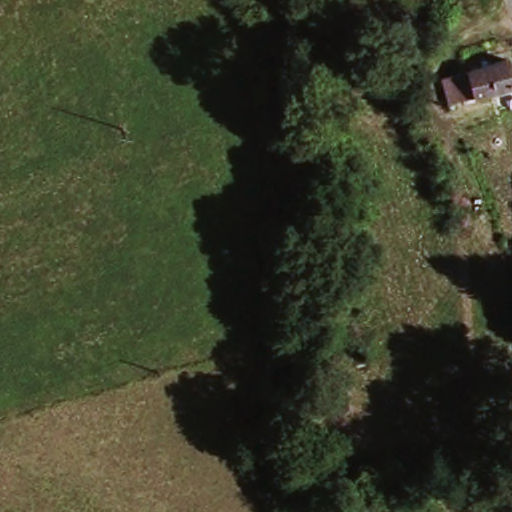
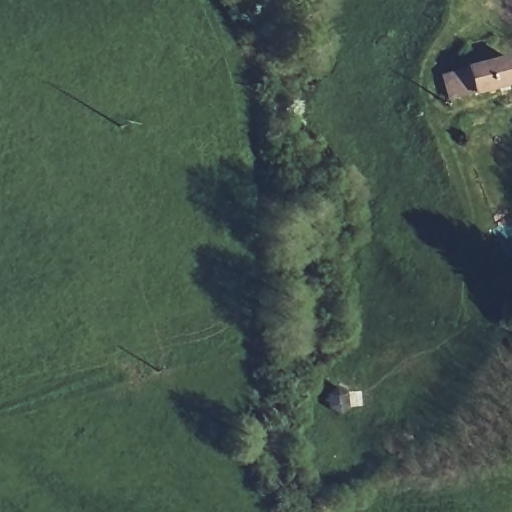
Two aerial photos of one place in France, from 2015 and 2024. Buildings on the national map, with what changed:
unchanged [(465,65),(509,54),(512,64),(512,106),(500,108),(498,99),(494,93),(476,97),(448,102),(441,76),(467,70),(465,65)]

